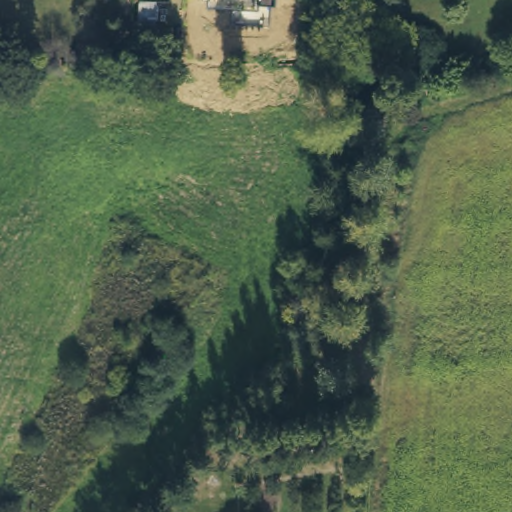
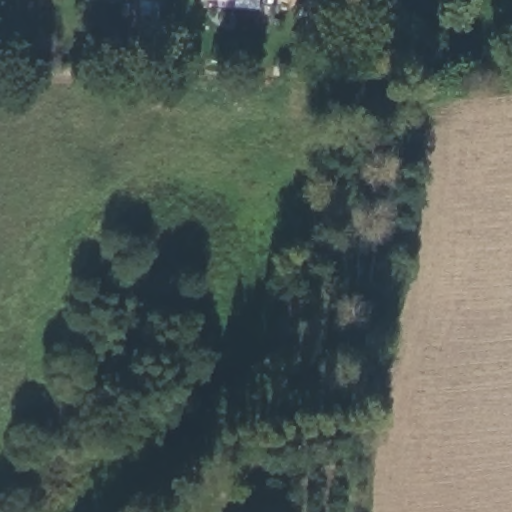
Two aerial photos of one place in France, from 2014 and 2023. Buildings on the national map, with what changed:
unchanged [(307,25),(307,38),(294,38),(294,25),(307,25)]

